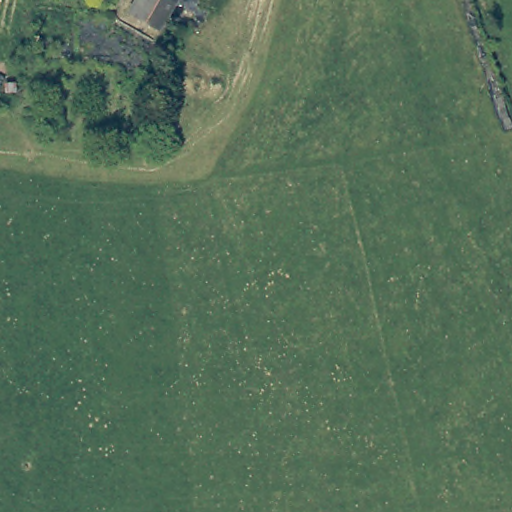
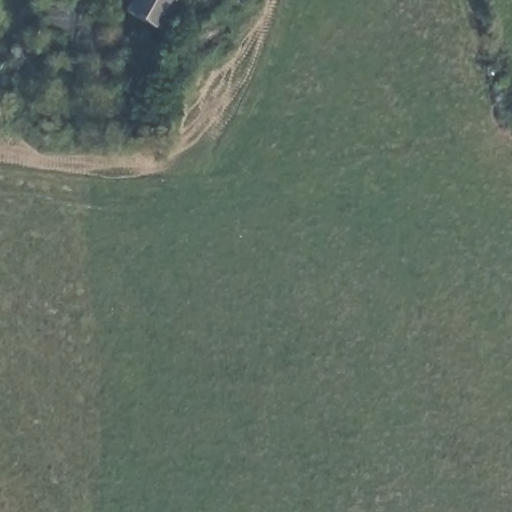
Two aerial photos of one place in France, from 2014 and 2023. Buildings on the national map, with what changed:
unchanged [(127,14),(135,0),(178,0),(158,35),(127,14)]

